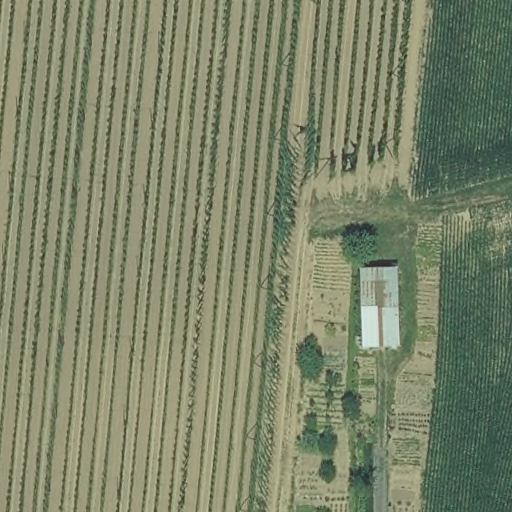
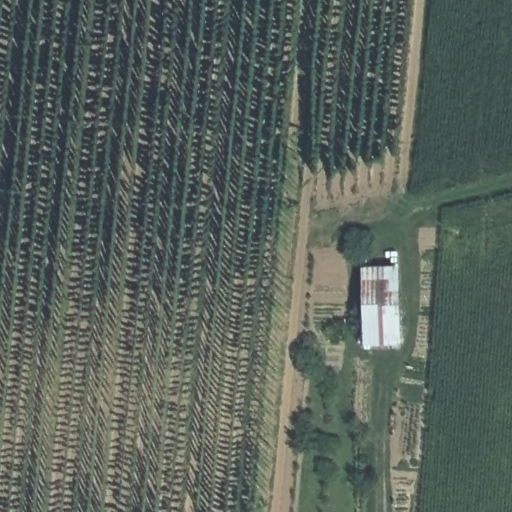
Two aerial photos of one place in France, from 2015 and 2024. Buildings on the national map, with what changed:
unchanged [(406,348),(356,353),(361,271),(399,273),(406,348)]

